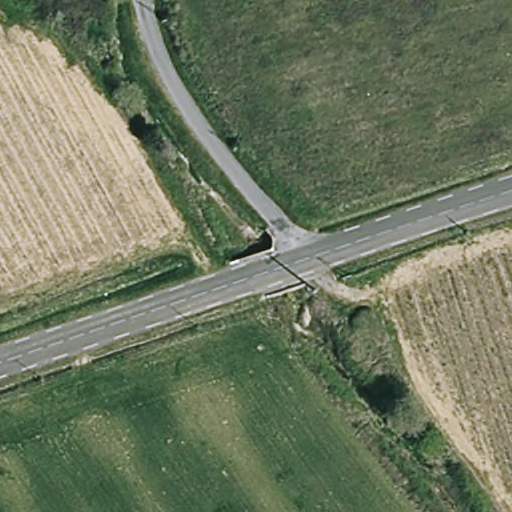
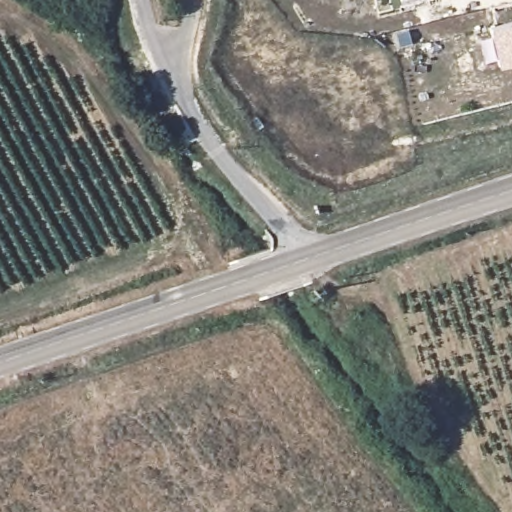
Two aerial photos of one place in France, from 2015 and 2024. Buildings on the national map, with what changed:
new [(497,66),(488,28),(512,22),(512,63),(497,66)]

